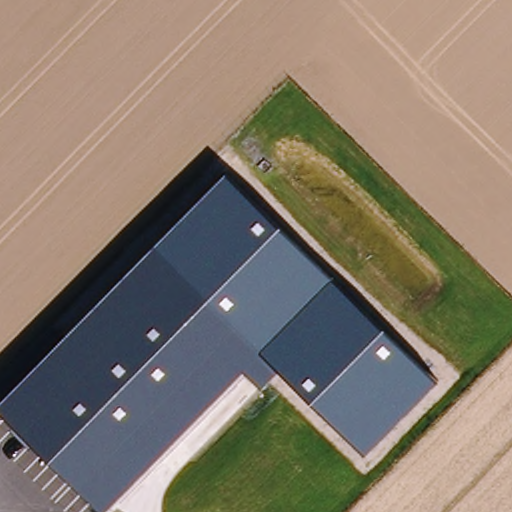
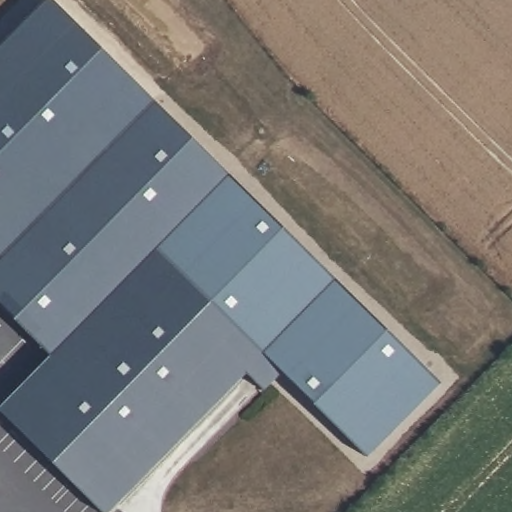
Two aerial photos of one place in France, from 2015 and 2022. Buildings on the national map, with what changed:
new [(0,303),(0,45),(45,0),(54,0),(227,174),(50,353),(0,303)]
unchanged [(227,174),(441,382),(366,456),(279,373),(262,391),(243,375),(105,512),(102,512),(0,410),(0,404),(50,353),(227,174)]

